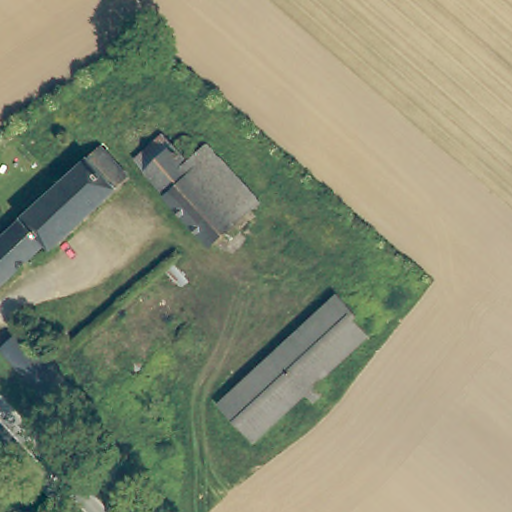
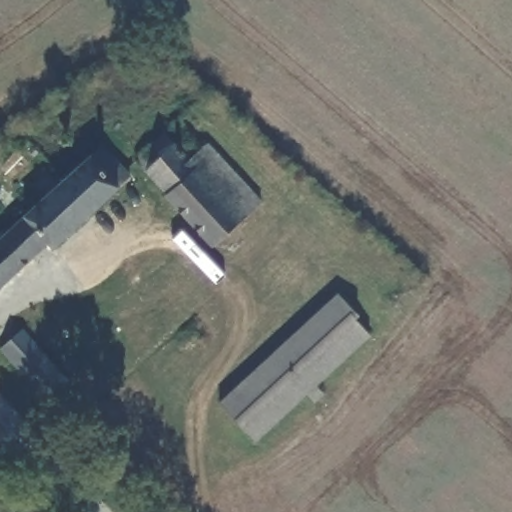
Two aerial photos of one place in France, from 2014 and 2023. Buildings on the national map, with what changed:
unchanged [(175,147),(178,142),(183,137),(189,137),(194,139),(198,145),(196,153),(197,154),(205,146),(260,202),(251,212),(258,219),(243,233),(235,227),(213,246),(167,200),(170,196),(137,163),(163,136),(175,147)]
unchanged [(95,152),(123,181),(49,251),(43,247),(0,287),(0,240),(54,190),(95,152)]
unchanged [(363,310),(359,315),(375,331),(260,440),(224,401),(341,288),(363,310)]
unchanged [(27,328),(87,397),(70,412),(7,346),(27,328)]
unchanged [(25,508),(31,508),(37,510),(37,512),(21,512),(25,508)]

